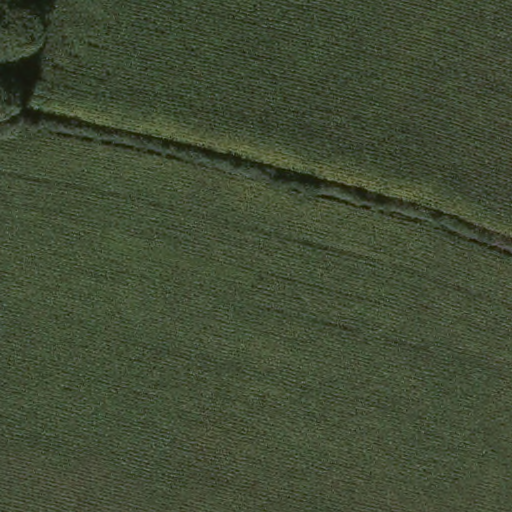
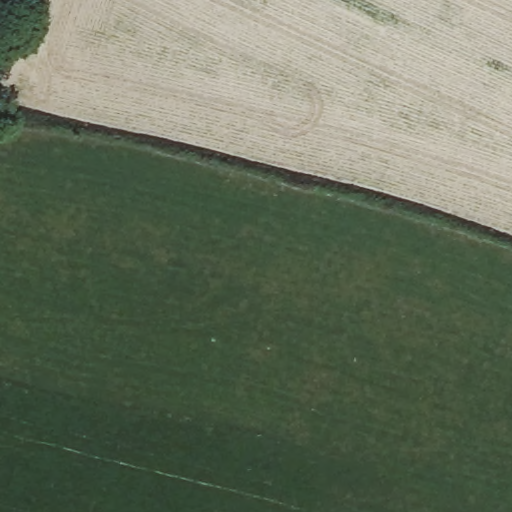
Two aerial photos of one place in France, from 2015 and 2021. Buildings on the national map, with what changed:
[]

